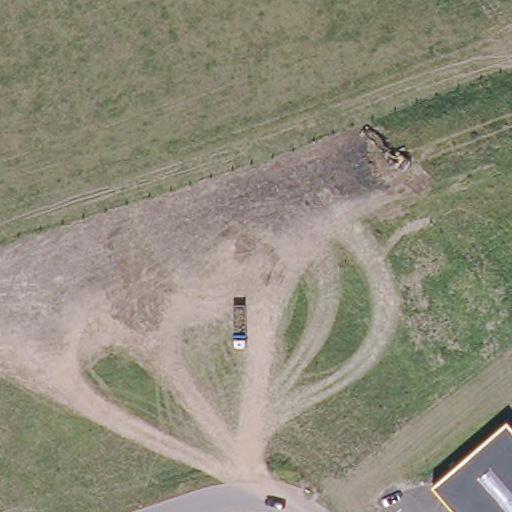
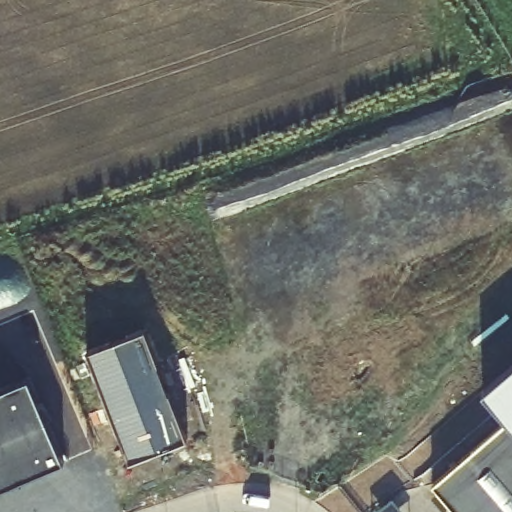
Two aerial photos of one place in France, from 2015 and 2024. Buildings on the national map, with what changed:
new [(87,350),(145,328),(187,438),(130,460),(87,350)]
new [(512,366),(512,425),(507,420),(483,391),(512,366)]
new [(63,461),(0,488),(0,391),(29,378),(63,461)]
unchanged [(456,512),(432,484),(507,420),(512,425),(512,512),(456,512)]

